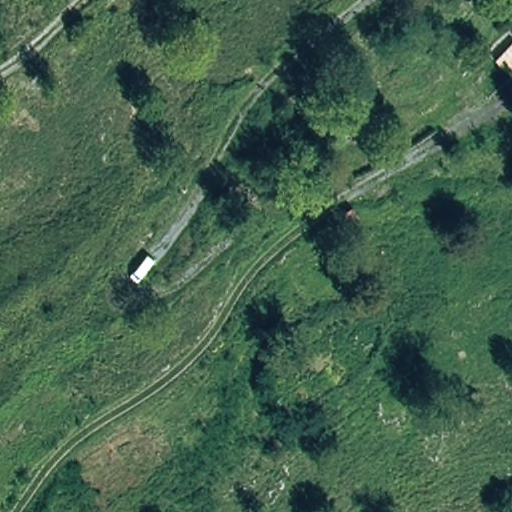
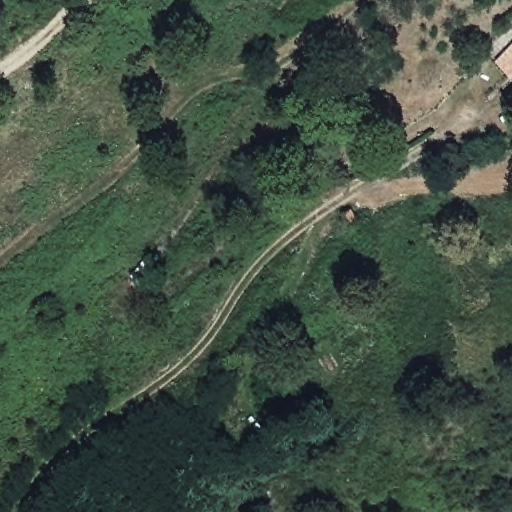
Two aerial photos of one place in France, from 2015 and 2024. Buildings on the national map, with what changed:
unchanged [(495,56),(512,42),(512,71),(510,73),(495,56)]

